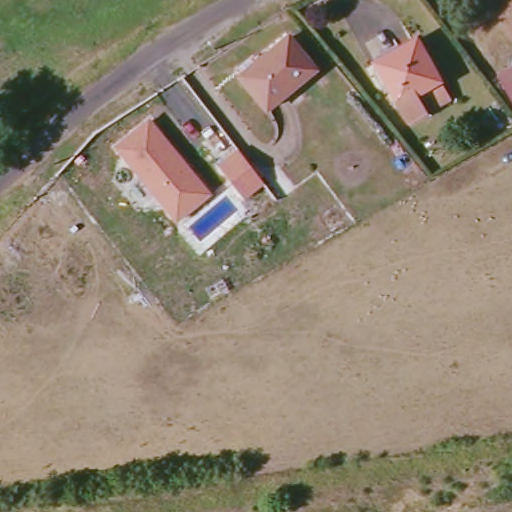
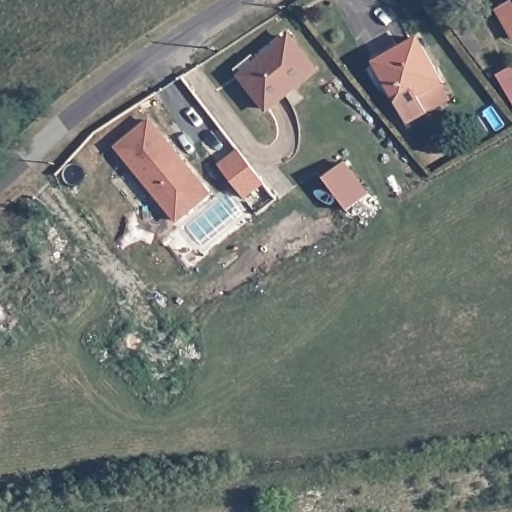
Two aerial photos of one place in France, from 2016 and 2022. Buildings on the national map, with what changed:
unchanged [(503,0),(512,15),(512,40),(507,44),(482,5),(490,0),(503,0)]
unchanged [(312,71),(263,110),(237,77),(284,38),(312,71)]
unchanged [(415,41),(439,86),(395,109),(372,65),(415,41)]
unchanged [(494,82),(512,67),(512,108),(494,82)]
unchanged [(210,192),(175,222),(112,145),(149,115),(210,192)]
unchanged [(263,182),(244,196),(217,162),(237,147),(263,182)]
new [(347,165),(370,197),(350,212),(327,180),(347,165)]

